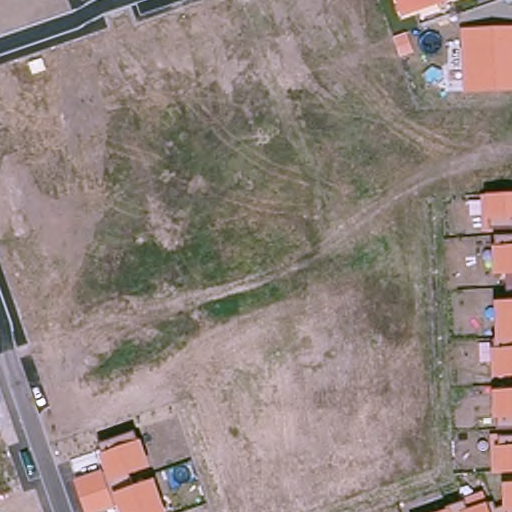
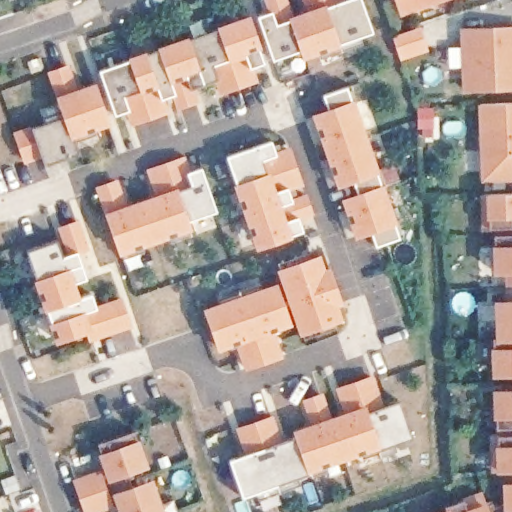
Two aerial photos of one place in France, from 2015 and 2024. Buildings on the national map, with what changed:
new [(341,43),(342,47),(304,61),(300,50),(273,59),(259,16),(270,12),(265,0),(291,0),(296,14),(340,0),(363,0),(374,32),(341,43)]
unchanged [(398,0),(446,0),(404,17),(398,0)]
new [(101,69),(251,15),(266,62),(255,66),(259,82),(221,95),(216,79),(195,87),(198,102),(177,109),(172,95),(164,97),(169,113),(132,126),(127,111),(116,115),(101,69)]
unchanged [(460,31),(512,29),(512,92),(464,94),(460,31)]
new [(63,116),(57,96),(96,81),(112,125),(74,138),(80,153),(46,164),(34,128),(63,116)]
new [(358,194),(355,182),(338,187),(312,114),(328,107),(324,96),(346,87),(351,99),(354,98),(398,222),(394,223),(400,237),(378,246),(373,231),(355,237),(343,199),(358,194)]
unchanged [(512,182),(482,183),(479,107),(512,106),(512,182)]
new [(273,140),(278,155),(262,161),(267,174),(271,172),(278,191),(288,187),(292,200),(282,203),(288,221),(298,217),(302,228),(292,232),(294,238),(258,250),(227,156),(273,140)]
new [(178,187),(179,191),(192,187),(188,172),(202,167),(217,210),(189,220),(193,230),(119,255),(105,212),(178,187)]
unchanged [(494,234),(482,234),(480,196),(488,195),(512,194),(512,228),(493,229),(494,234)]
unchanged [(492,348),(496,347),(496,302),(506,301),(504,274),(494,275),(492,247),(497,247),(496,237),(512,237),(512,377),(494,378),(492,348)]
new [(59,238),(65,257),(79,250),(89,278),(77,282),(82,297),(94,293),(99,307),(86,312),(92,332),(58,343),(27,251),(59,238)]
new [(321,253),(326,268),(331,266),(344,303),(339,306),(344,320),(301,335),(278,268),(321,253)]
new [(278,282),(294,326),(218,352),(204,308),(278,282)]
unchanged [(499,419),(495,420),(494,392),(512,391),(512,428),(500,428),(499,419)]
new [(296,437),(293,428),(366,403),(368,410),(401,400),(414,437),(245,497),(231,460),(296,437)]
unchanged [(138,441),(143,439),(152,467),(130,475),(135,487),(155,479),(168,512),(119,512),(117,507),(104,512),(86,512),(75,481),(105,470),(101,455),(99,445),(135,431),(138,441)]
unchanged [(512,436),(512,472),(498,472),(490,472),(489,436),(501,436),(512,436)]
unchanged [(449,509),(448,506),(463,502),(462,498),(482,491),(487,502),(494,501),(497,510),(504,506),(504,483),(512,483),(512,512),(441,512),(449,509)]

